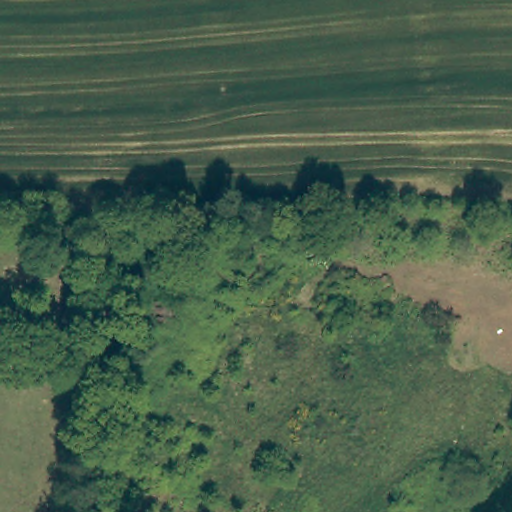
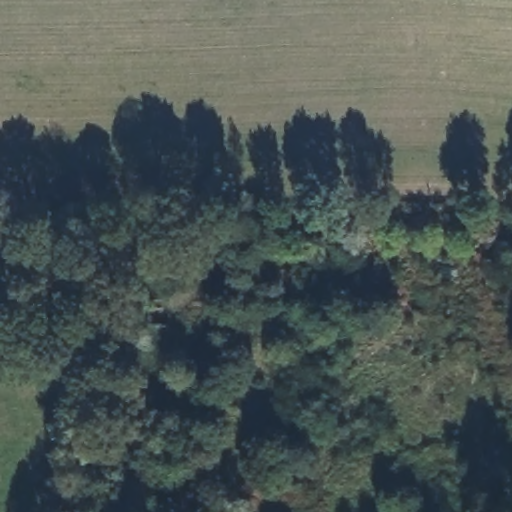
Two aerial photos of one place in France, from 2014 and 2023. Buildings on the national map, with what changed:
unchanged [(171,280),(172,327),(143,326),(145,280),(171,280)]

